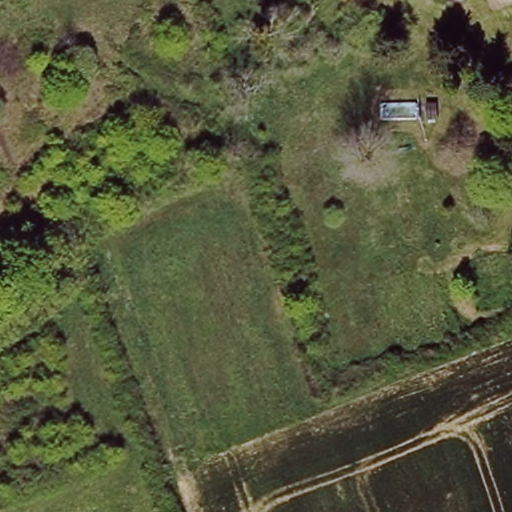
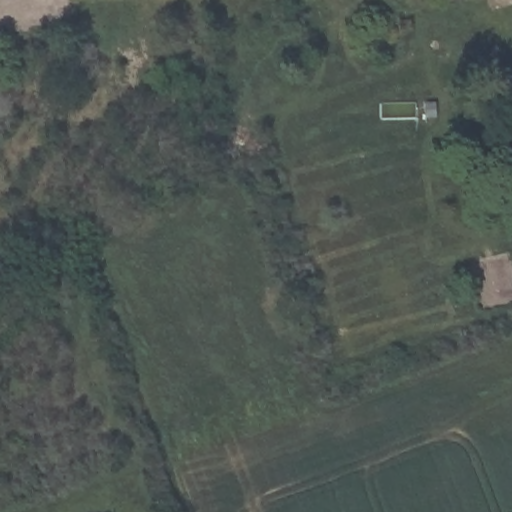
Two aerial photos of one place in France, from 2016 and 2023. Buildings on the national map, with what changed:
unchanged [(441,0),(447,0),(442,2),(441,0)]

